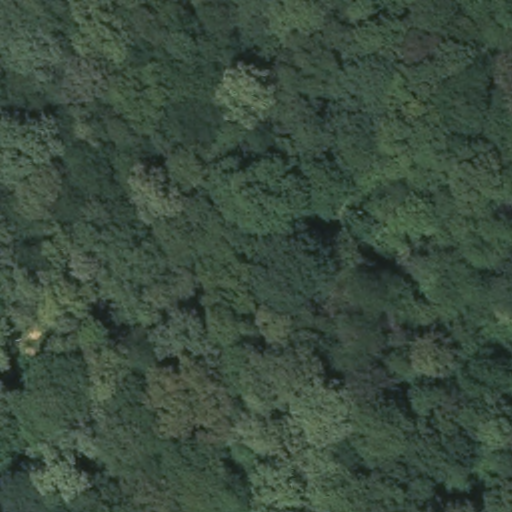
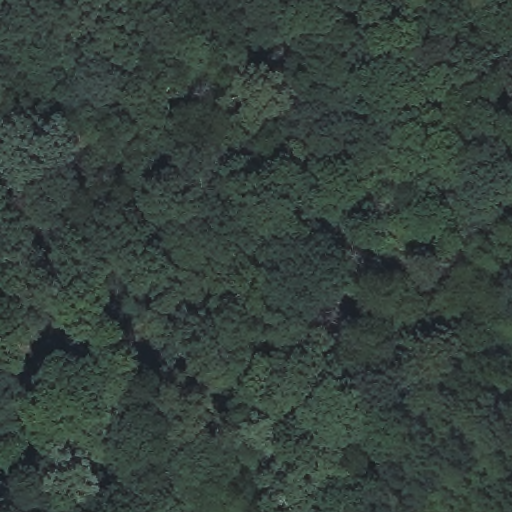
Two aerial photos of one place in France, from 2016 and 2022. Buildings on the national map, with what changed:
[]

